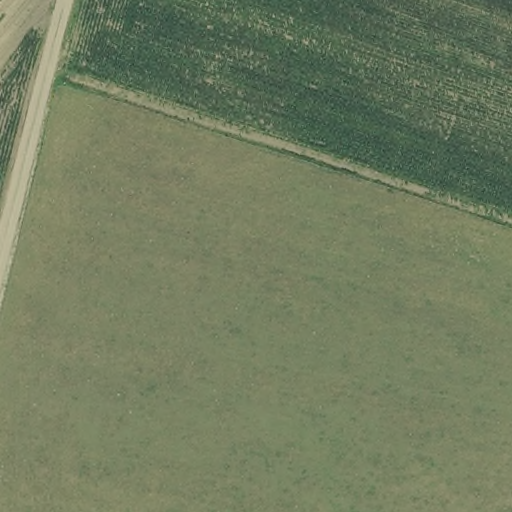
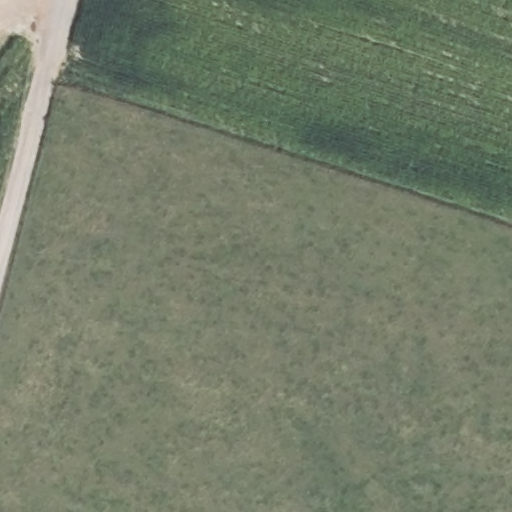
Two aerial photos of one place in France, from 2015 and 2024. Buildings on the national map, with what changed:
[]

